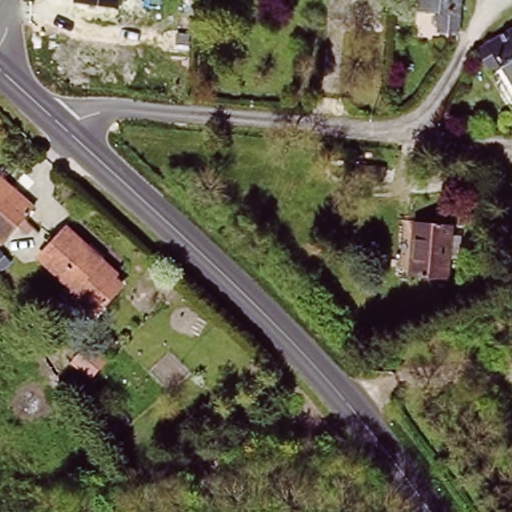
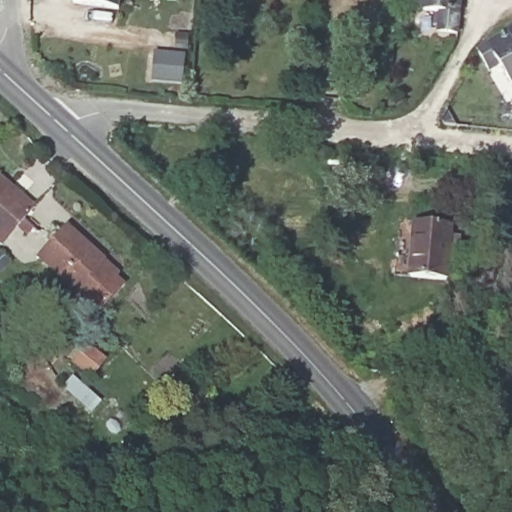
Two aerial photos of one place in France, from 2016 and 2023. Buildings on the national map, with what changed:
unchanged [(73,2),(74,0),(120,0),(119,11),(73,2)]
unchanged [(444,21),(445,3),(431,2),(431,0),(464,0),(463,22),(444,21)]
unchanged [(508,27),(512,24),(512,34),(508,27)]
unchanged [(512,34),(512,85),(500,64),(492,69),(477,44),(508,27),(512,34)]
new [(158,52),(187,55),(185,85),(155,82),(158,52)]
unchanged [(362,165),(395,167),(393,181),(362,178),(362,165)]
unchanged [(10,224),(0,235),(0,183),(35,213),(18,231),(10,224)]
unchanged [(414,221),(452,224),(452,234),(462,235),(458,271),(449,271),(448,281),(409,277),(414,221)]
unchanged [(70,293),(77,286),(40,253),(68,222),(102,254),(118,270),(113,275),(122,284),(94,315),(70,293)]
unchanged [(90,397),(76,412),(49,386),(62,371),(90,397)]

